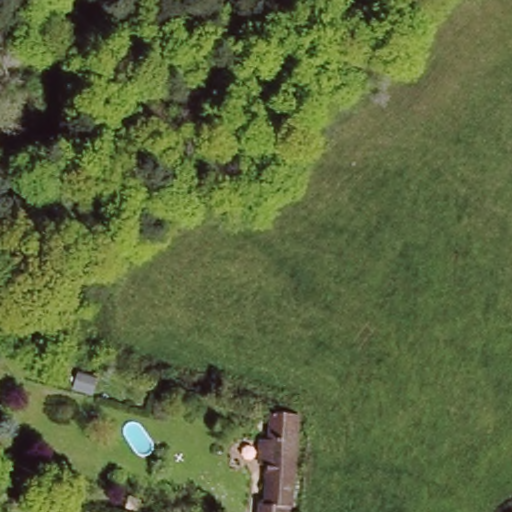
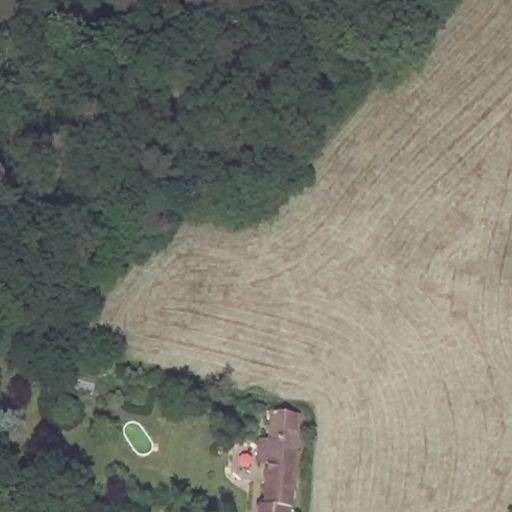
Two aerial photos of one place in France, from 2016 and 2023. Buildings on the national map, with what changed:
unchanged [(266,421),(250,416),(251,413),(237,408),(240,400),(254,405),(269,410),(266,421)]
unchanged [(266,497),(272,456),(265,456),(266,443),(273,444),(277,412),(303,416),(292,500),(290,512),(252,512),(254,495),(266,497)]

